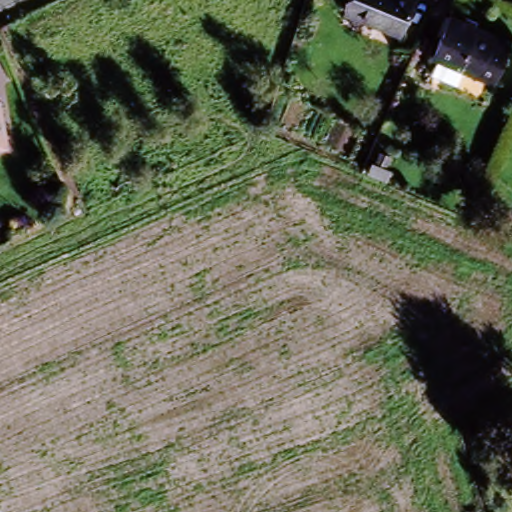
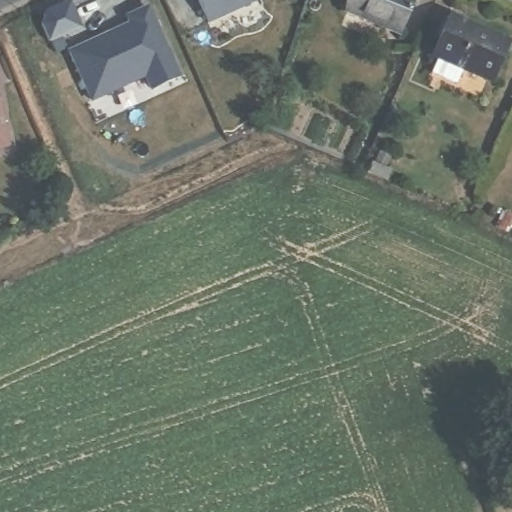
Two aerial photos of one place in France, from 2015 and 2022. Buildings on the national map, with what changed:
new [(196,0),(262,0),(207,25),(196,0)]
unchanged [(347,5),(349,0),(411,0),(399,28),(347,5)]
new [(130,24),(127,17),(147,8),(178,76),(150,88),(144,75),(90,99),(69,51),(122,27),(130,24)]
unchanged [(431,74),(438,58),(433,56),(449,18),(508,43),(492,81),(463,69),(456,85),(431,74)]
unchanged [(0,147),(0,137),(1,146),(0,147)]

